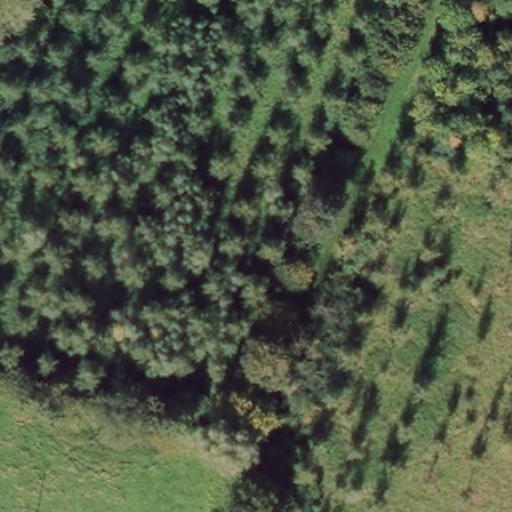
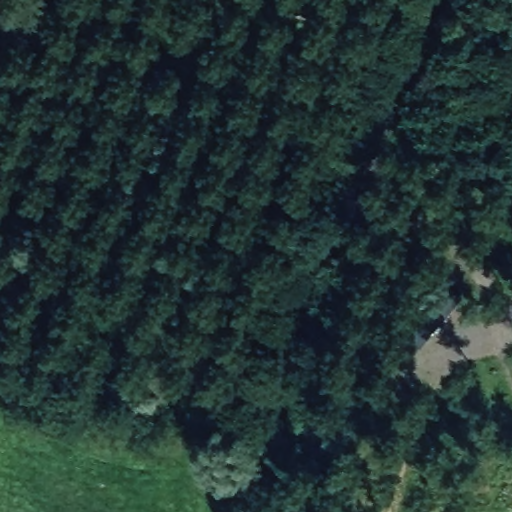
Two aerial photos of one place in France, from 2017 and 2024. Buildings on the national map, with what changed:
unchanged [(173,401),(202,410),(199,423),(168,416),(173,401)]

